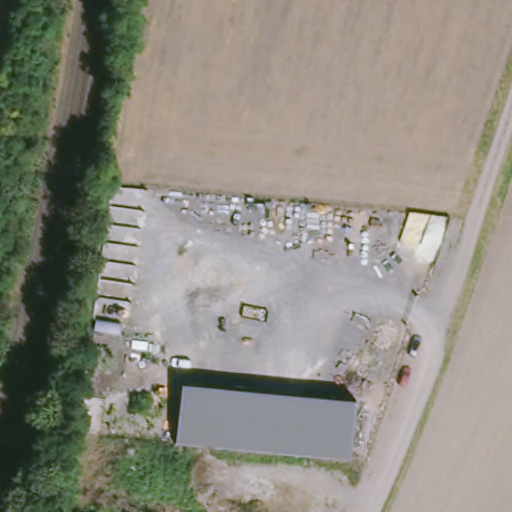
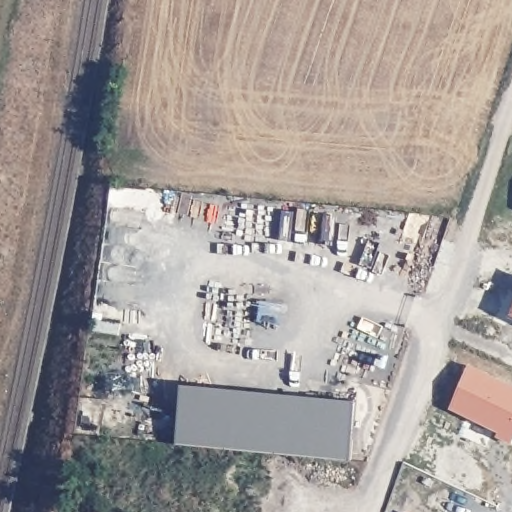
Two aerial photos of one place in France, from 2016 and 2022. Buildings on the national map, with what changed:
new [(507,317),(512,309),(512,319),(507,317)]
new [(509,448),(494,440),(495,434),(447,412),(467,366),(512,387),(512,441),(509,448)]
unchanged [(347,456),(177,438),(182,377),(355,392),(347,456)]

